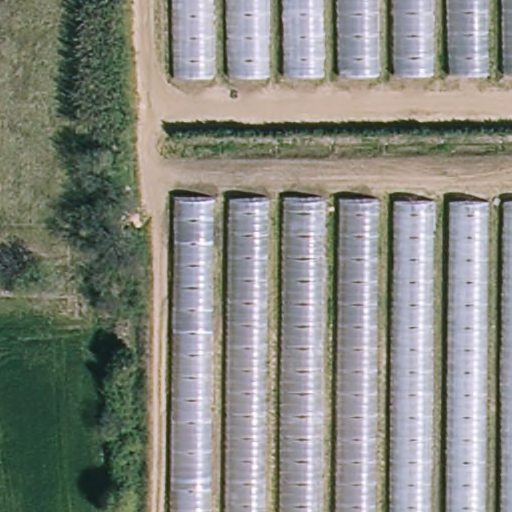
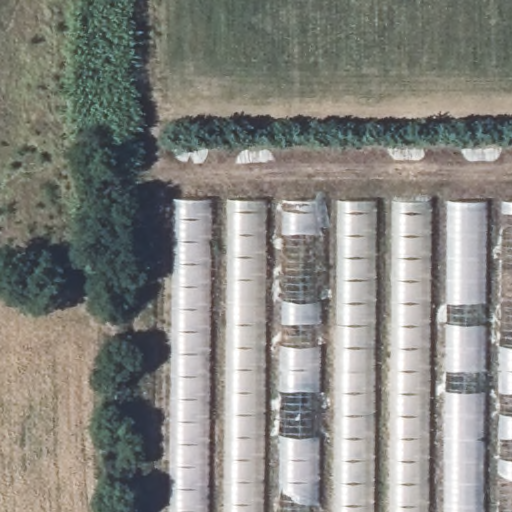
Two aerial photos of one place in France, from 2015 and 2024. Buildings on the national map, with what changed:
demolished [(172,77),(170,0),(430,0),(431,74),(172,77)]
demolished [(450,77),(449,0),(512,0),(512,76),(450,77)]
unchanged [(168,512),(172,198),(512,201),(512,512),(168,512)]

